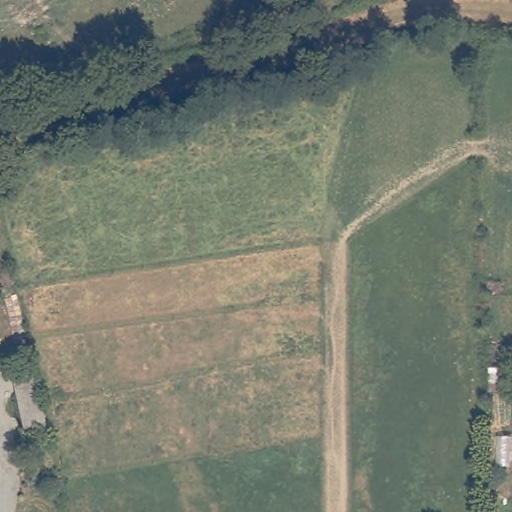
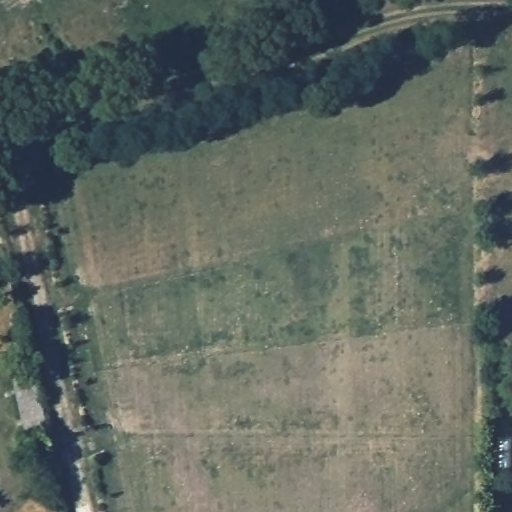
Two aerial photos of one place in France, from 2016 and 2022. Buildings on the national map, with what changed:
unchanged [(54,447),(26,448),(16,384),(40,379),(54,447)]

